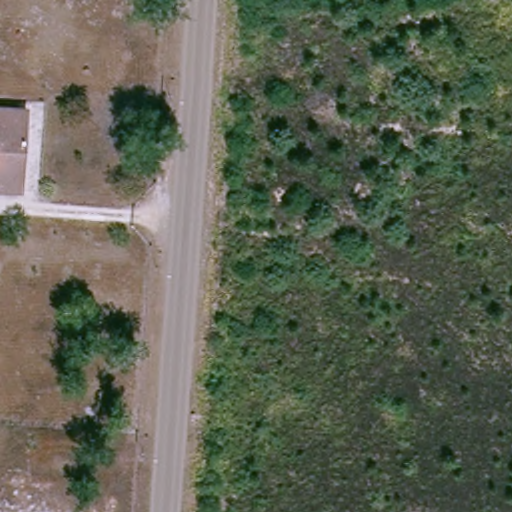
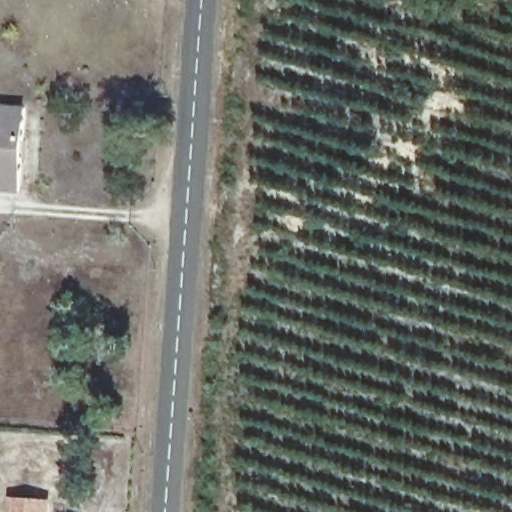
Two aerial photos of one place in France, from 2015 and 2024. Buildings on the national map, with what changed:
unchanged [(21,189),(0,188),(0,104),(29,107),(21,189)]
new [(10,499),(51,501),(50,512),(10,512),(10,499)]

